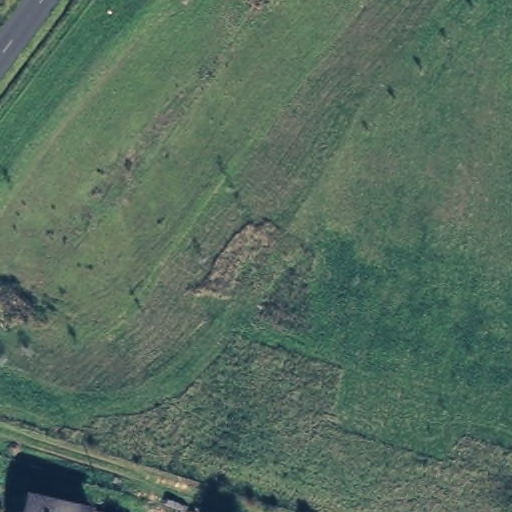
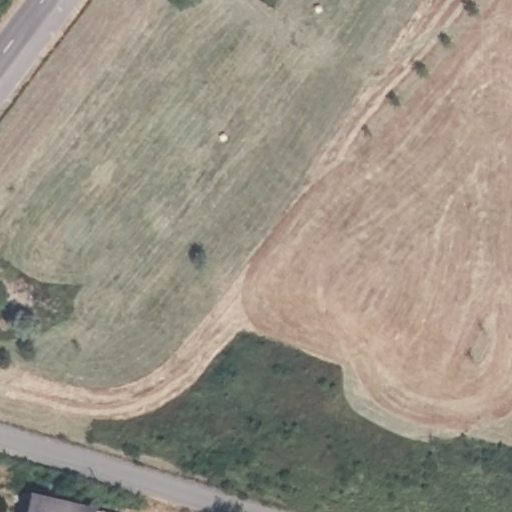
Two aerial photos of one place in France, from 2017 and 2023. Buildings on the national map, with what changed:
unchanged [(35,501),(85,512),(33,512),(35,501)]

